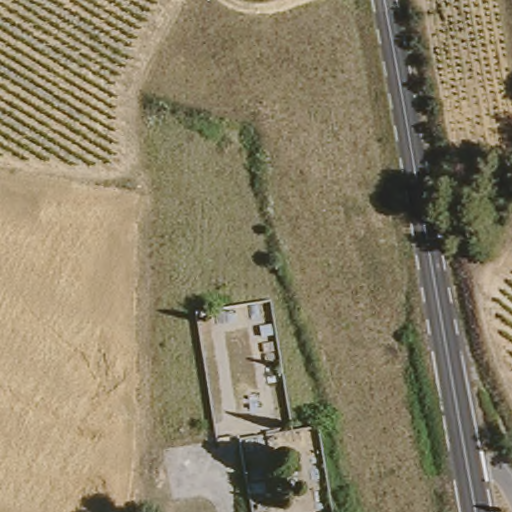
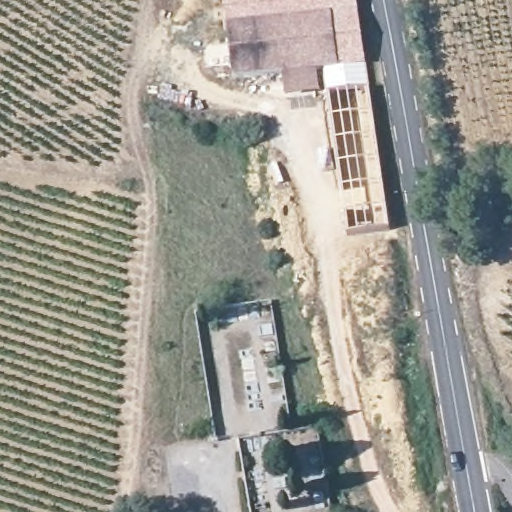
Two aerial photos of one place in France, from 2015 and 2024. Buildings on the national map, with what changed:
new [(223,0),(356,0),(367,64),(334,65),(326,11),(228,25),(223,0)]
new [(326,11),(334,65),(229,79),(222,26),(326,11)]
new [(390,230),(349,236),(327,92),(324,71),(317,72),(320,91),(286,96),(282,71),(334,65),(367,64),(390,230)]

